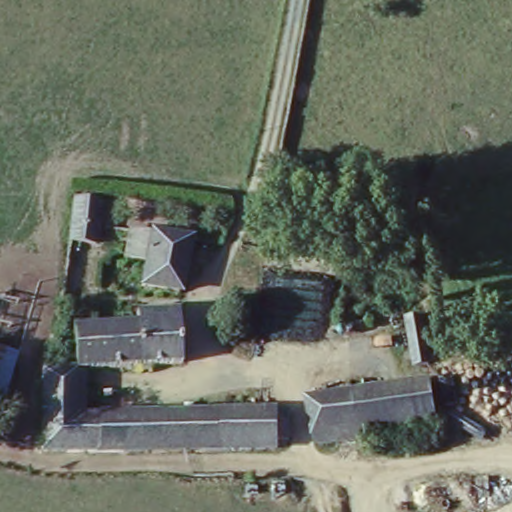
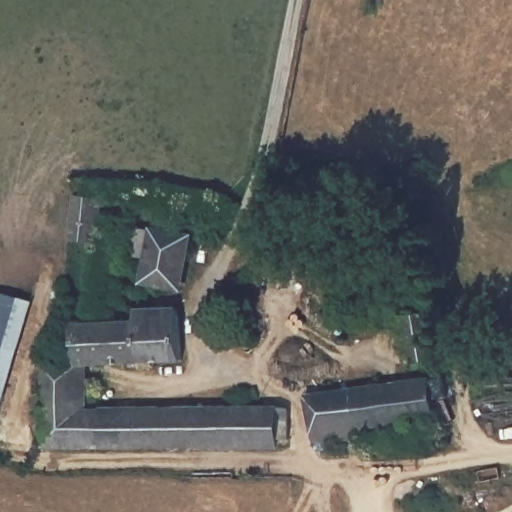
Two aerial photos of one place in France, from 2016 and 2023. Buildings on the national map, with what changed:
unchanged [(71,238),(77,196),(100,198),(94,242),(73,239),(71,238)]
unchanged [(188,234),(179,288),(141,281),(146,257),(126,254),(130,226),(188,234)]
new [(33,300),(0,408),(0,290),(33,300)]
unchanged [(40,361),(84,361),(82,324),(136,319),(136,307),(179,302),(184,356),(82,365),(82,402),(221,403),(291,403),(289,433),(276,432),(276,443),(122,442),(40,441),(40,361)]
unchanged [(422,309),(428,359),(414,361),(408,311),(422,309)]
demolished [(0,410),(0,347),(16,351),(0,410)]
unchanged [(431,412),(397,416),(398,425),(378,429),(377,419),(350,422),(350,431),(311,436),(306,391),(425,375),(431,412)]

